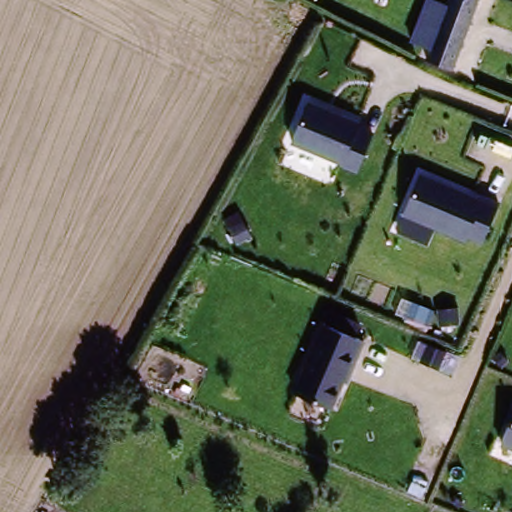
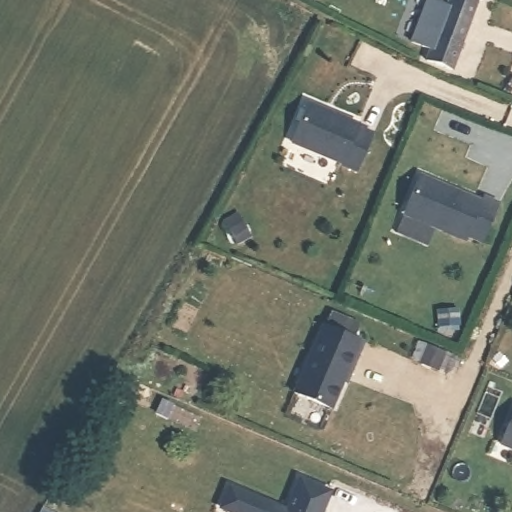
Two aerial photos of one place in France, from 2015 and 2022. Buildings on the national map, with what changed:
unchanged [(439,59),(450,10),(452,1),(452,0),(471,0),(470,4),(458,66),(439,59)]
unchanged [(285,144),(305,106),(373,135),(357,175),(285,144)]
unchanged [(420,176),(496,208),(478,246),(405,215),(420,176)]
unchanged [(288,396),(322,323),(365,344),(331,414),(288,396)]
unchanged [(512,408),(512,452),(495,447),(512,408)]
new [(334,495),(326,512),(290,512),(303,481),(334,495)]
new [(286,512),(228,512),(222,510),(231,488),(286,512)]
new [(48,512),(40,512),(41,509),(48,512)]

